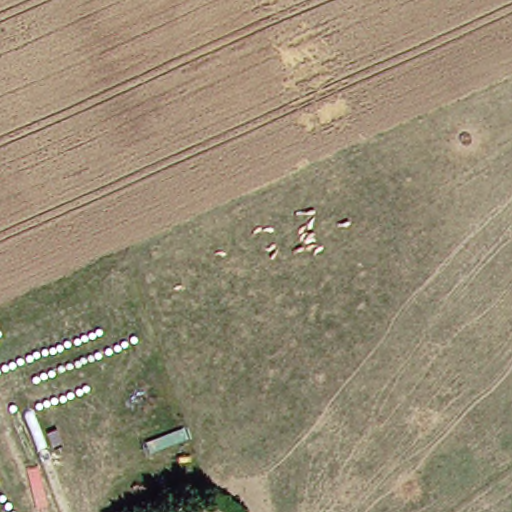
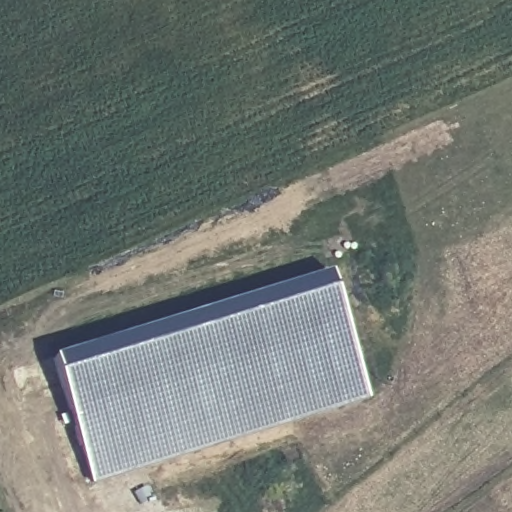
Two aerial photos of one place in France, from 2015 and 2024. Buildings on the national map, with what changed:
new [(52,358),(329,272),(367,402),(90,485),(52,358)]

